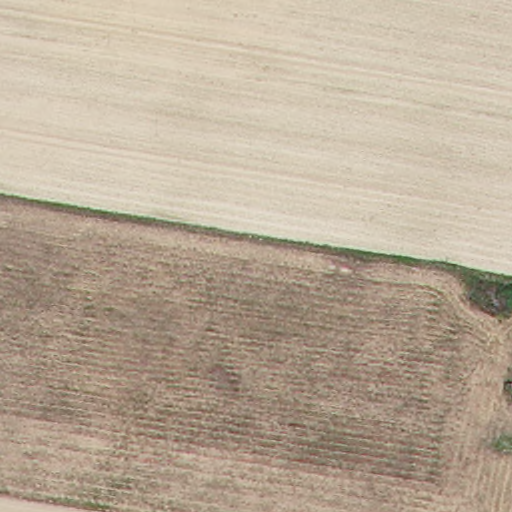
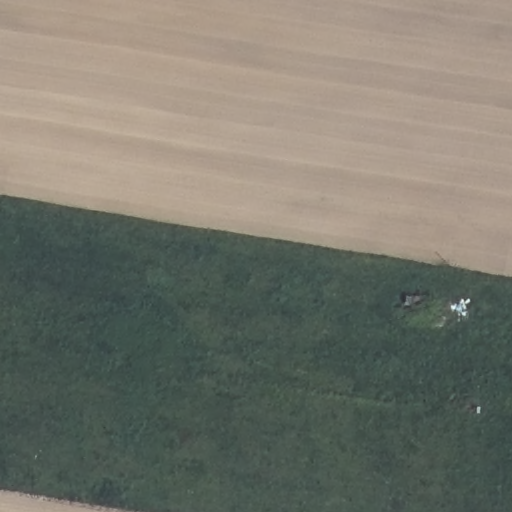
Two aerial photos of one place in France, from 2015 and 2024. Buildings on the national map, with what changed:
[]

